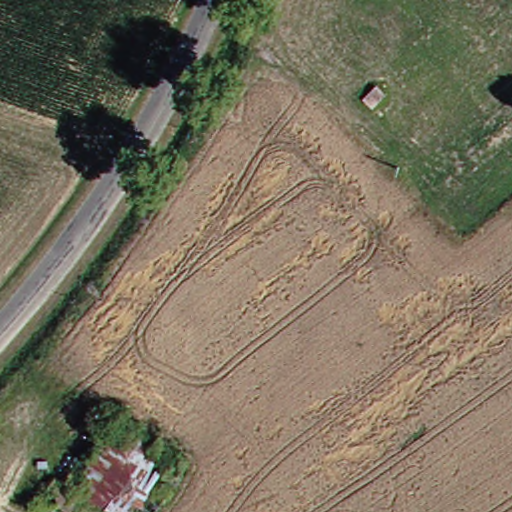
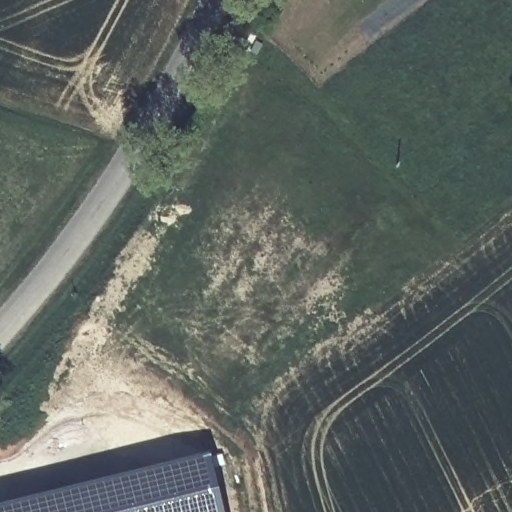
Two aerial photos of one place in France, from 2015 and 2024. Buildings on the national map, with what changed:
demolished [(158,512),(121,512),(91,491),(99,481),(95,468),(113,444),(140,439),(146,433),(163,444),(153,455),(184,480),(158,512)]
new [(0,505),(210,453),(223,512),(0,512),(0,505)]
demolished [(86,497),(74,512),(55,512),(40,500),(60,476),(86,497)]

